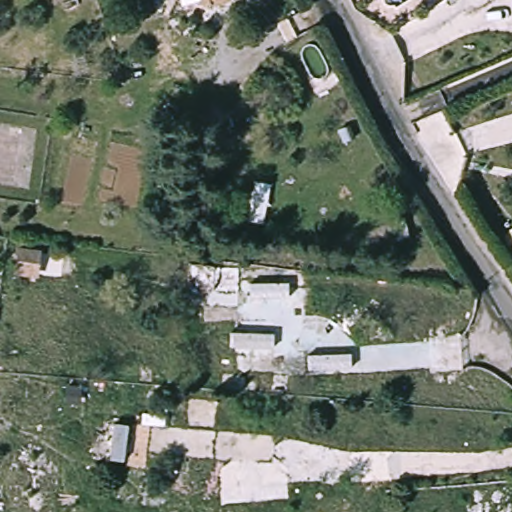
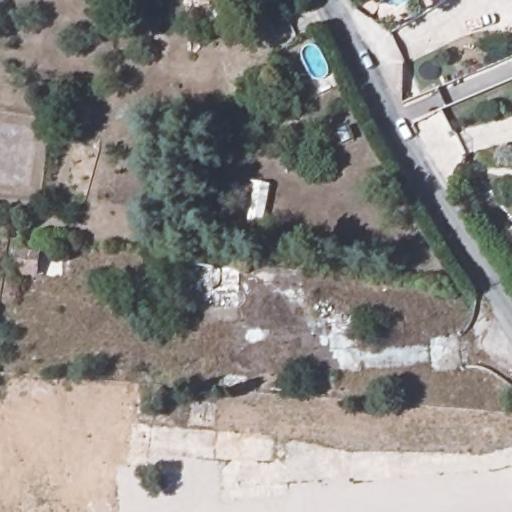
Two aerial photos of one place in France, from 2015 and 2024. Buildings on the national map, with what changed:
unchanged [(201,7),(200,0),(231,0),(231,1),(201,7)]
unchanged [(42,248),(38,276),(16,273),(20,246),(42,248)]

